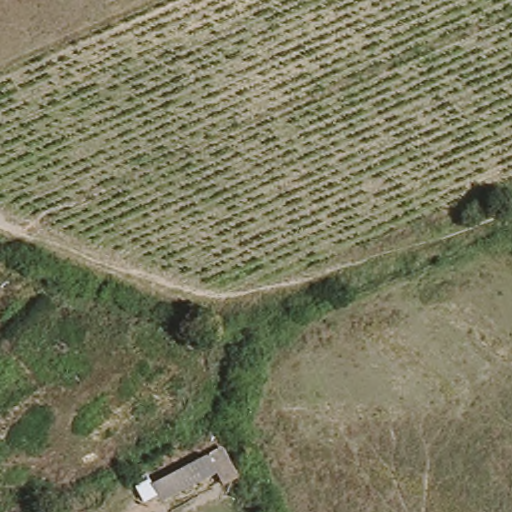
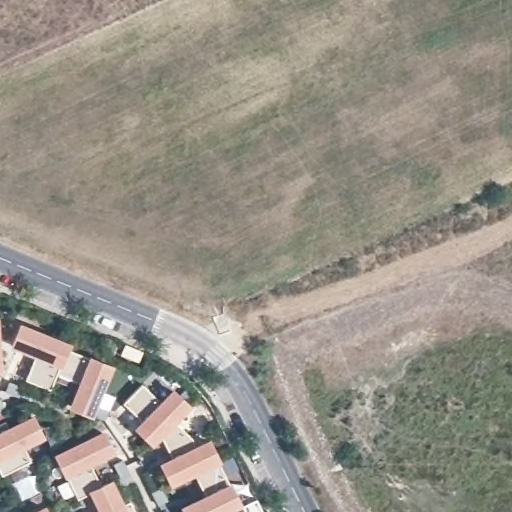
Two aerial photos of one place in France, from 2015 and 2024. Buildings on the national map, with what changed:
new [(20,325),(68,343),(66,347),(56,374),(50,390),(25,380),(35,353),(13,345),(20,325)]
new [(2,371),(0,371),(0,341),(2,371)]
new [(66,347),(110,366),(90,414),(71,406),(81,383),(56,374),(66,347)]
new [(172,387),(192,406),(173,425),(193,444),(209,438),(220,461),(217,463),(227,483),(230,481),(242,505),(227,512),(182,512),(180,507),(201,496),(192,476),(170,485),(158,461),(168,456),(159,438),(152,445),(133,428),(140,420),(124,403),(142,384),(158,401),(172,387)]
new [(5,421),(9,430),(32,418),(42,436),(23,445),(30,461),(2,475),(0,471),(0,424),(5,421)]
demolished [(250,471),(223,485),(218,478),(153,500),(151,493),(142,498),(135,485),(146,476),(141,470),(220,432),(250,471)]
new [(102,433),(111,451),(89,463),(101,486),(91,491),(77,498),(56,455),(102,433)]
new [(91,491),(101,486),(110,482),(122,505),(130,501),(135,512),(95,512),(100,509),(91,491)]
new [(47,512),(37,512),(45,508),(47,512)]

